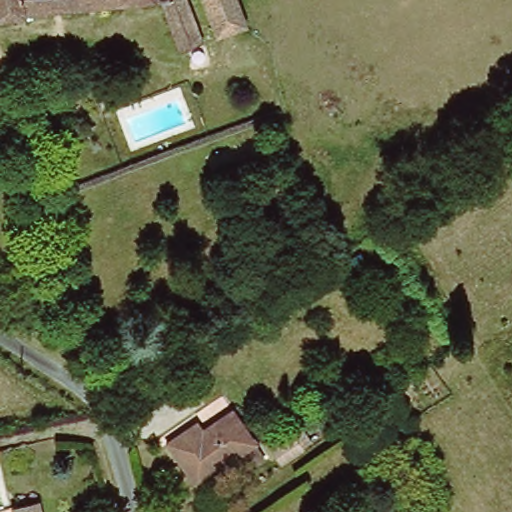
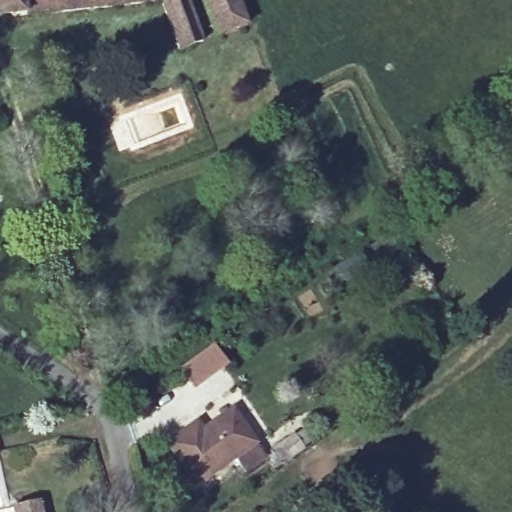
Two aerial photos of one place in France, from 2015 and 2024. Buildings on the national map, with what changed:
unchanged [(188,0),(194,0),(206,45),(182,49),(165,3),(0,20),(0,0),(184,0),(185,1),(188,0)]
unchanged [(251,31),(223,37),(208,0),(240,0),(251,31)]
new [(229,366),(192,392),(177,371),(212,346),(229,366)]
unchanged [(196,489),(169,445),(197,426),(202,433),(233,413),(257,449),(266,463),(245,477),(236,463),(196,489)]
unchanged [(36,502),(39,512),(13,512),(12,510),(36,502)]

